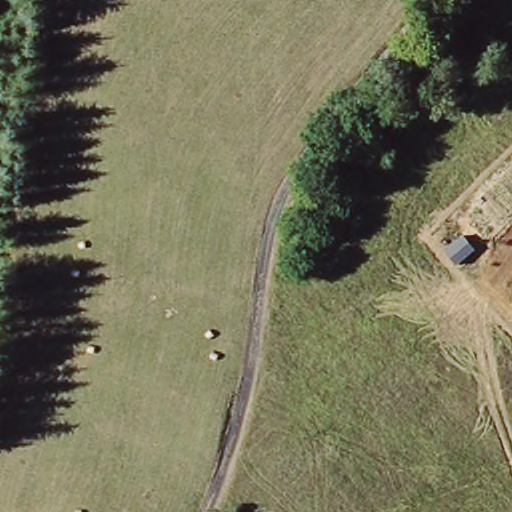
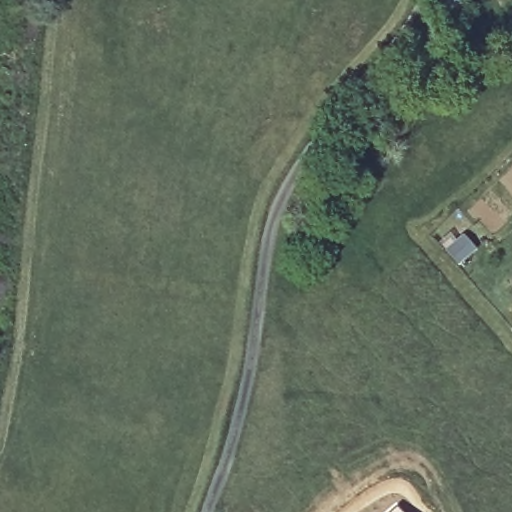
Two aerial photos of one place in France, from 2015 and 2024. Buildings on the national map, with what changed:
new [(395,503),(404,512),(385,512),(395,503)]

